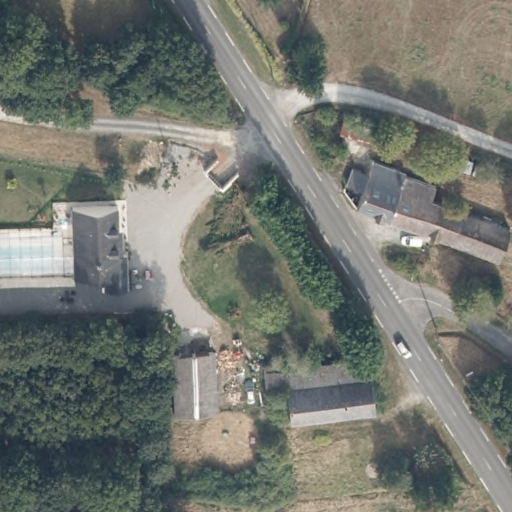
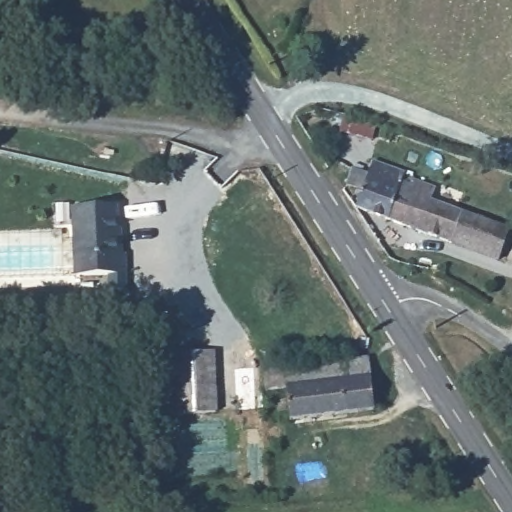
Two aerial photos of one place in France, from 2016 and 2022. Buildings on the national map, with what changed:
unchanged [(371,140),(338,128),(342,114),(376,125),(371,140)]
unchanged [(363,205),(368,189),(352,183),(358,165),(373,169),(378,159),(410,170),(408,175),(441,184),(436,199),(466,210),(456,241),(365,207),(363,205)]
unchanged [(115,205),(116,236),(119,236),(120,254),(124,254),(125,289),(110,290),(109,270),(73,271),(71,207),(115,205)]
unchanged [(512,227),(512,233),(503,258),(456,241),(466,210),(512,227)]
unchanged [(211,349),(215,410),(180,413),(176,351),(211,349)]
unchanged [(375,407),(294,419),(290,388),(268,391),(267,367),(287,365),(370,355),(375,407)]

